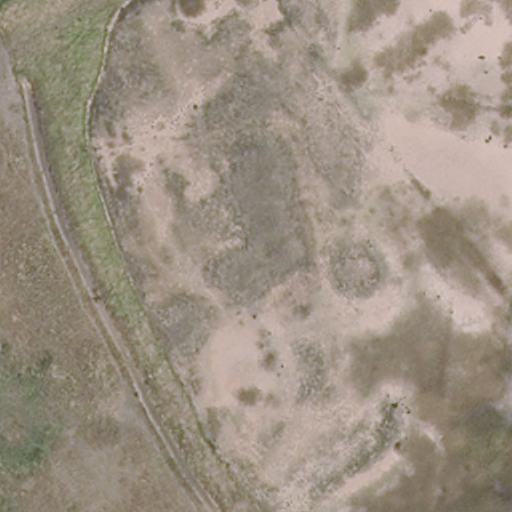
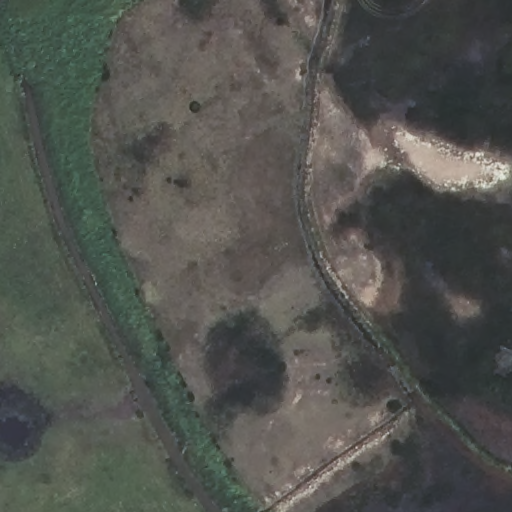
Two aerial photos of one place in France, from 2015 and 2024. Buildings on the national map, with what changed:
[]

